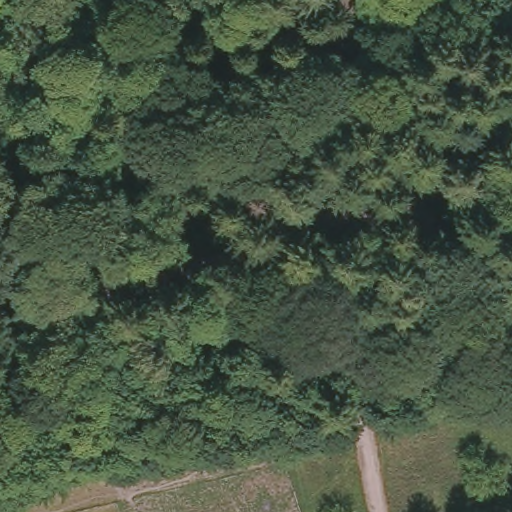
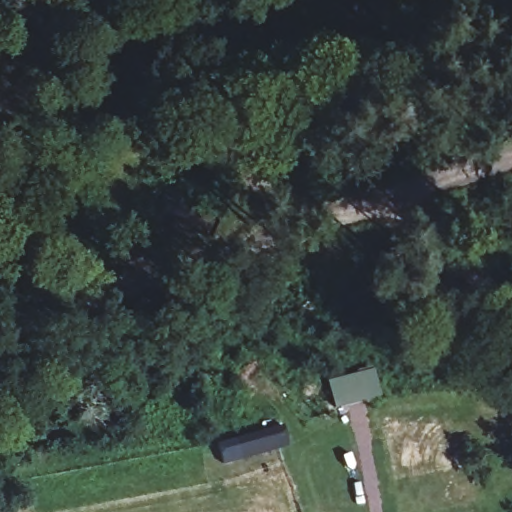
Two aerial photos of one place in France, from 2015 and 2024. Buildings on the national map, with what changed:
new [(372,368),(380,396),(334,409),(326,381),(372,368)]

